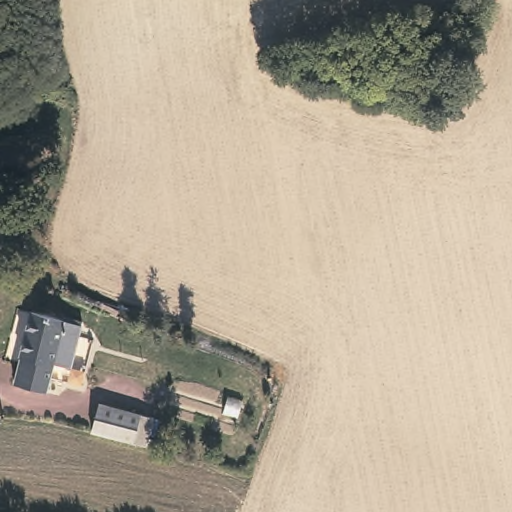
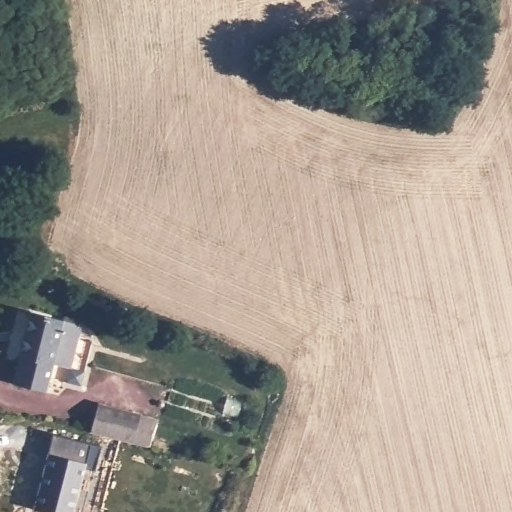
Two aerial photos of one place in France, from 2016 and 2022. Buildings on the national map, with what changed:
unchanged [(25,313),(72,325),(76,326),(67,370),(51,366),(14,357),(25,313)]
unchanged [(51,366),(45,393),(7,384),(10,372),(14,357),(51,366)]
unchanged [(130,445),(92,435),(96,417),(100,405),(136,415),(132,430),(130,445)]
new [(52,433),(100,446),(94,467),(85,465),(73,512),(45,512),(32,508),(52,433)]

